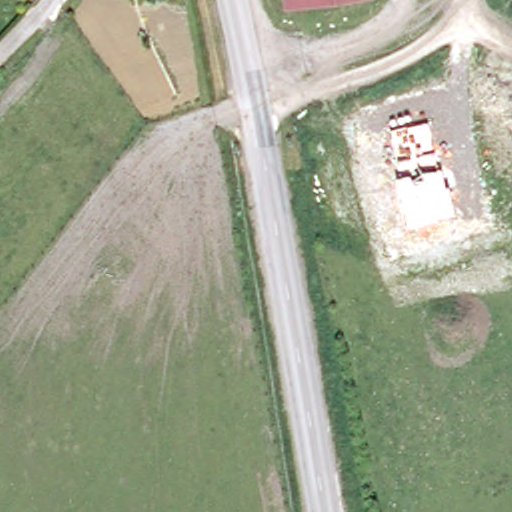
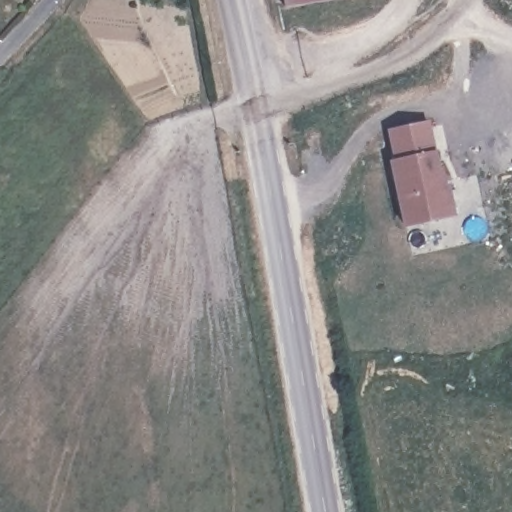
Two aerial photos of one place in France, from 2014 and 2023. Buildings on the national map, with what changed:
unchanged [(288,0),(333,0),(289,7),(288,0)]
new [(436,150),(440,149),(456,216),(404,227),(390,159),(394,159),(388,129),(430,119),(436,150)]

